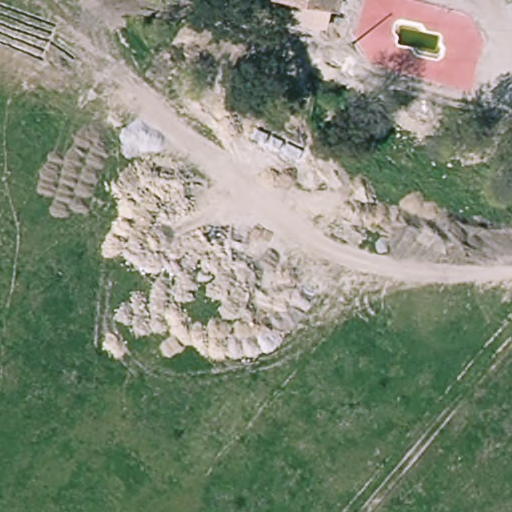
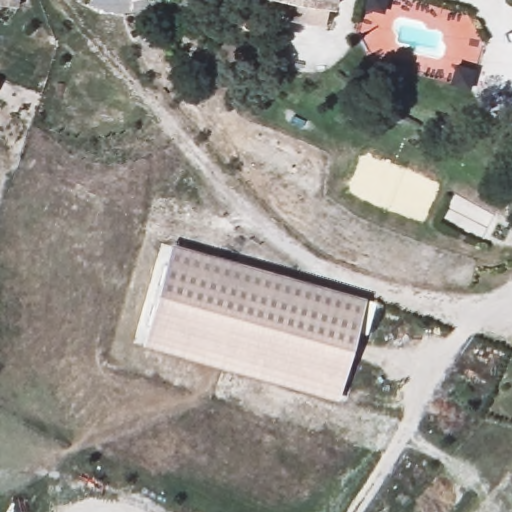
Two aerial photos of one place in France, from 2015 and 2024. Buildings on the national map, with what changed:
unchanged [(283,0),(332,0),(331,8),(283,0)]
new [(141,346),(171,244),(366,299),(336,401),(141,346)]

